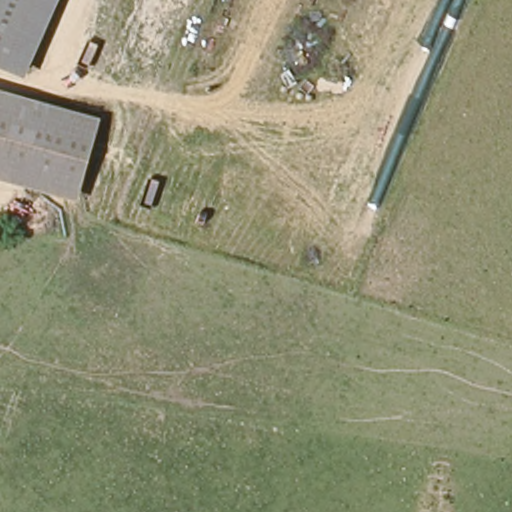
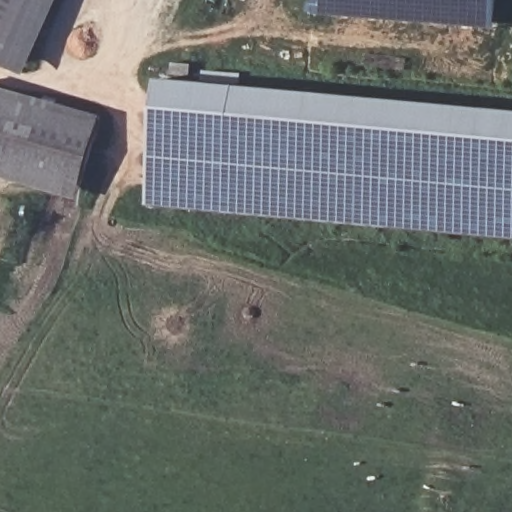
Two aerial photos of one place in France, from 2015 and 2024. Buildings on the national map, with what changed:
unchanged [(0,62),(0,0),(64,0),(31,75),(0,62)]
new [(314,0),(498,0),(495,29),(312,15),(314,0)]
new [(512,111),(512,240),(148,205),(160,79),(512,111)]
unchanged [(105,115),(83,196),(0,175),(0,87),(105,115)]

